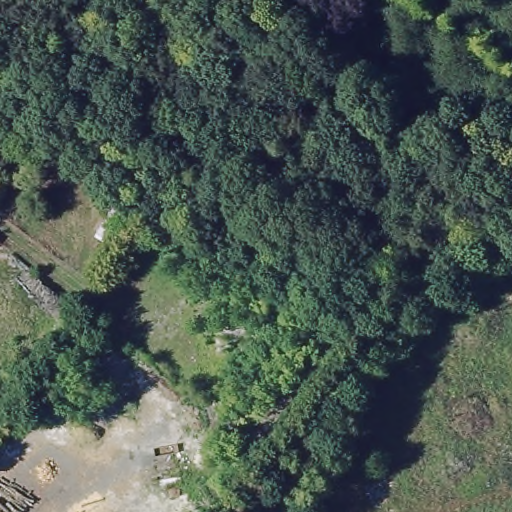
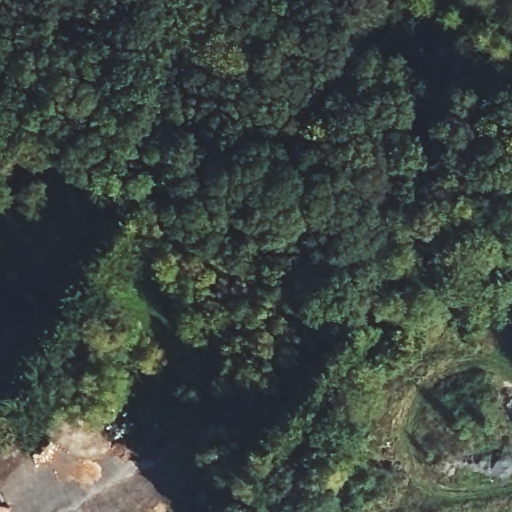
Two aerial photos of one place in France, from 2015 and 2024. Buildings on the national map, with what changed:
[]

